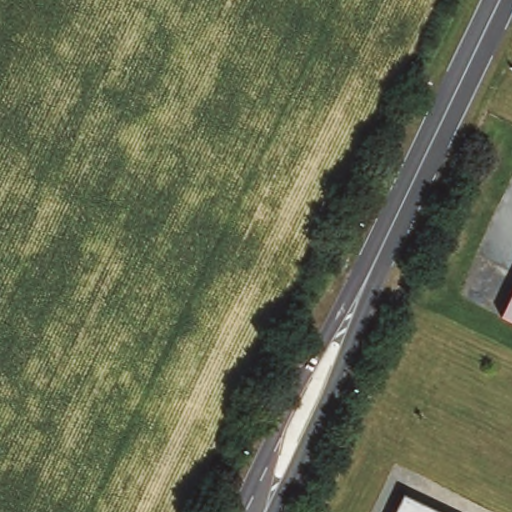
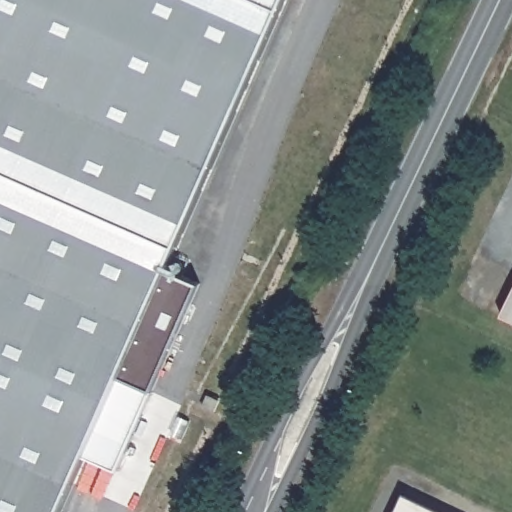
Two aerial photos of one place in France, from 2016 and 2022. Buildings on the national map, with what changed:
new [(288,0),(166,271),(200,285),(131,444),(98,429),(61,512),(0,512),(0,0),(288,0)]
unchanged [(512,292),(512,320),(501,315),(512,292)]
unchanged [(403,495),(439,512),(395,512),(403,495)]

